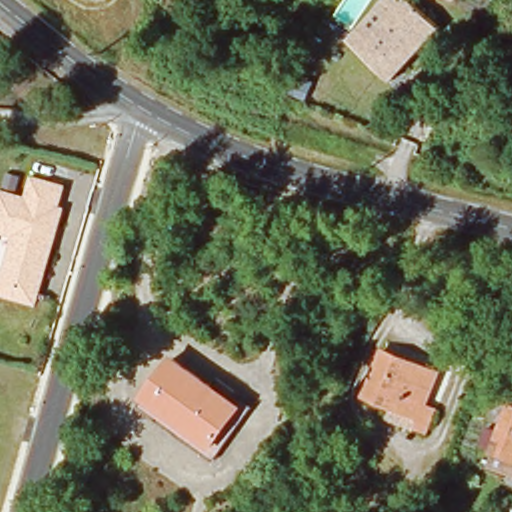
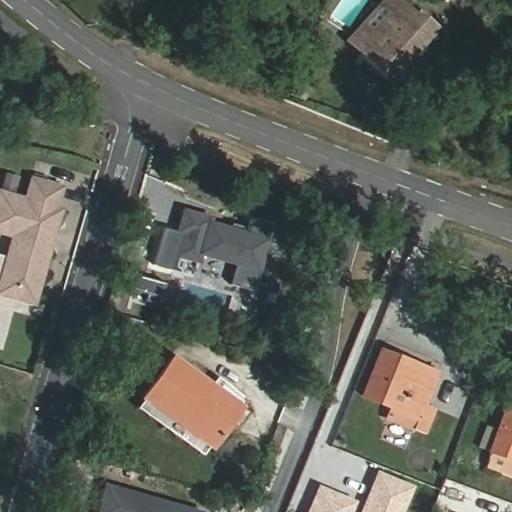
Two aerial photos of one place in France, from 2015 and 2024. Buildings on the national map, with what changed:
unchanged [(426,46),(422,44),(416,49),(420,53),(392,83),(361,54),(350,44),(386,8),(393,0),(409,0),(441,31),(426,46)]
unchanged [(449,0),(454,0),(453,2),(449,0)]
unchanged [(0,65),(0,60),(2,62),(0,65)]
unchanged [(4,284),(18,237),(0,231),(0,204),(4,192),(9,193),(30,199),(36,178),(67,187),(62,208),(66,210),(62,226),(56,248),(42,295),(39,304),(2,294),(4,284)]
new [(251,291),(228,284),(234,265),(199,256),(197,264),(174,256),(171,268),(154,263),(164,226),(179,230),(184,208),(214,218),(212,222),(245,231),(249,218),(271,225),(251,291)]
unchanged [(362,398),(381,351),(437,374),(425,406),(436,411),(426,437),(415,433),(386,421),(391,409),(362,398)]
unchanged [(216,455),(146,404),(176,363),(245,414),(216,455)]
unchanged [(487,469),(487,467),(492,455),(490,454),(507,407),(512,408),(512,478),(487,469)]
new [(376,471),(414,487),(403,512),(358,512),(376,471)]
new [(204,512),(99,512),(109,482),(205,512),(204,512)]
new [(317,486),(356,501),(351,512),(307,512),(317,486)]

